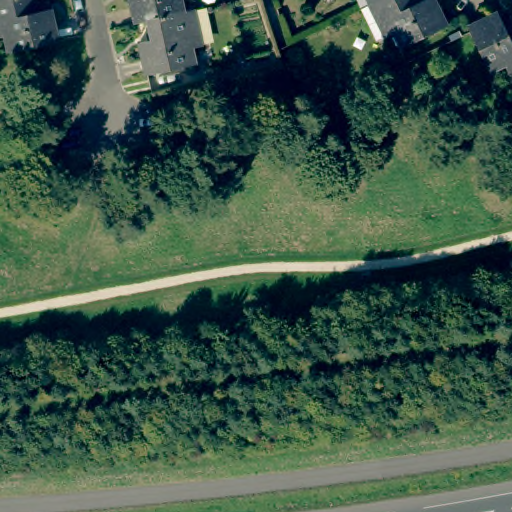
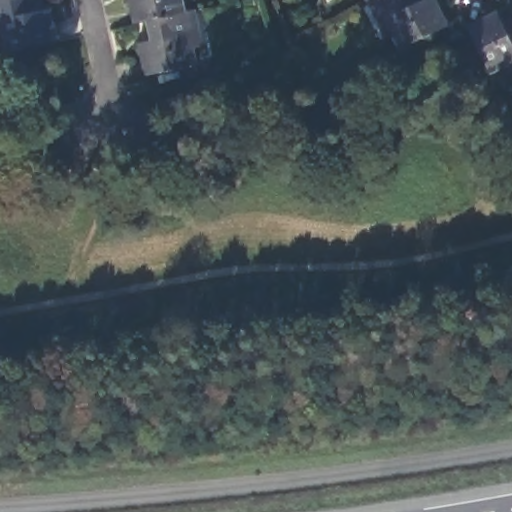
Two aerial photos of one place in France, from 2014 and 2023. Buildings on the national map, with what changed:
unchanged [(32,5),(45,2),(51,34),(45,36),(0,45),(0,0),(31,0),(32,5)]
unchanged [(174,8),(135,16),(122,19),(119,0),(174,0),(175,7),(174,8)]
unchanged [(445,20),(398,41),(391,26),(381,31),(366,0),(436,0),(445,20)]
unchanged [(466,20),(465,17),(497,2),(502,12),(512,7),(512,63),(507,65),(502,55),(487,62),(472,31),(466,20)]
unchanged [(188,43),(182,45),(186,60),(134,70),(127,37),(139,35),(135,16),(174,8),(175,7),(181,7),(188,43)]

